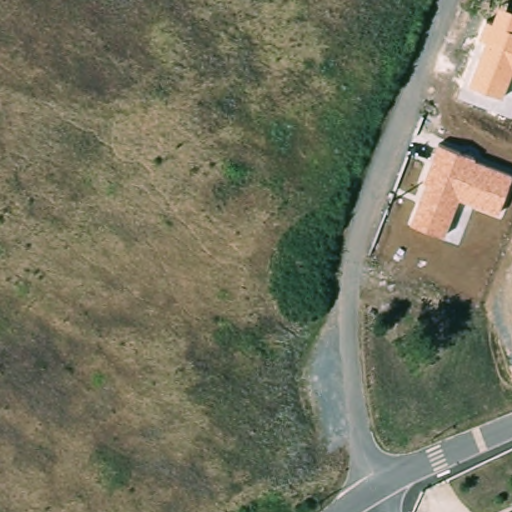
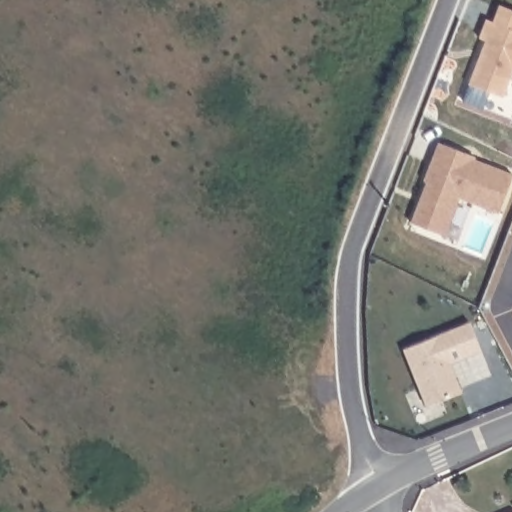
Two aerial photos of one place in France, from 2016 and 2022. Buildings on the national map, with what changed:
unchanged [(468,85),(485,39),(478,36),(485,19),(492,21),(499,5),(512,10),(512,72),(503,96),(468,85)]
unchanged [(460,198),(443,236),(412,224),(426,184),(422,181),(438,143),(476,157),(474,161),(512,174),(512,178),(499,213),(460,198)]
new [(469,323),(481,351),(465,358),(450,364),(462,393),(427,408),(403,351),(452,330),(469,323)]

